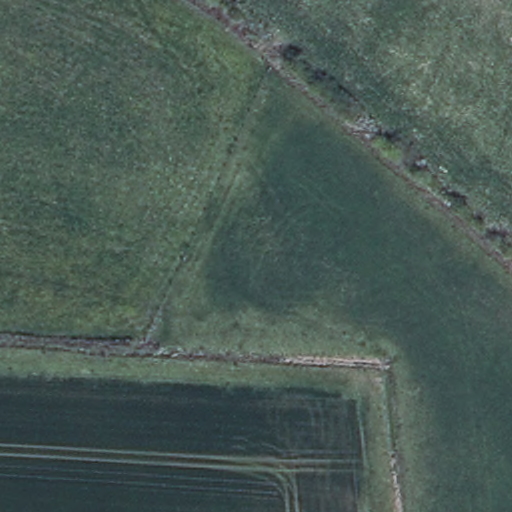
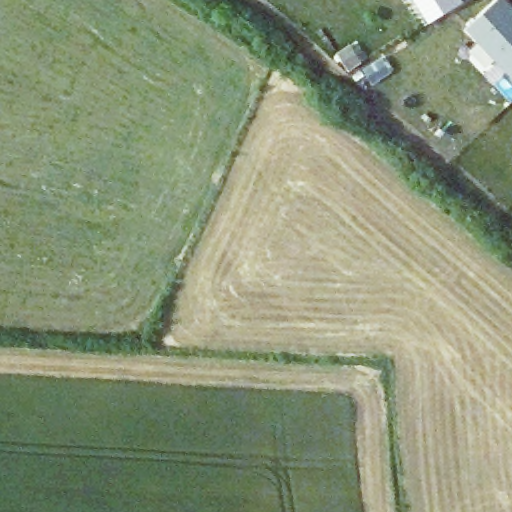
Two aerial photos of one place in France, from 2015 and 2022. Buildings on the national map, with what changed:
new [(439,0),(466,0),(447,12),(439,0)]
new [(467,29),(499,0),(503,0),(512,9),(512,82),(467,29)]

